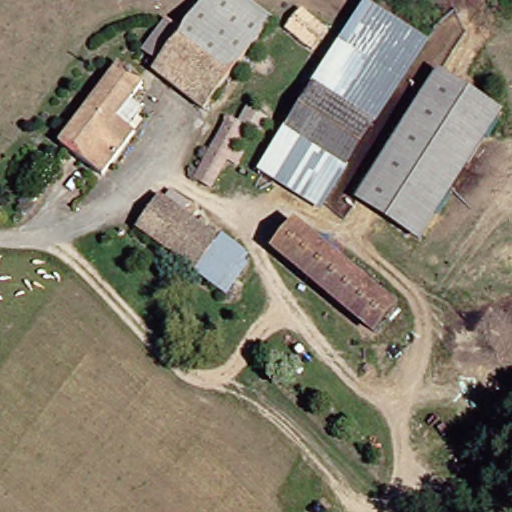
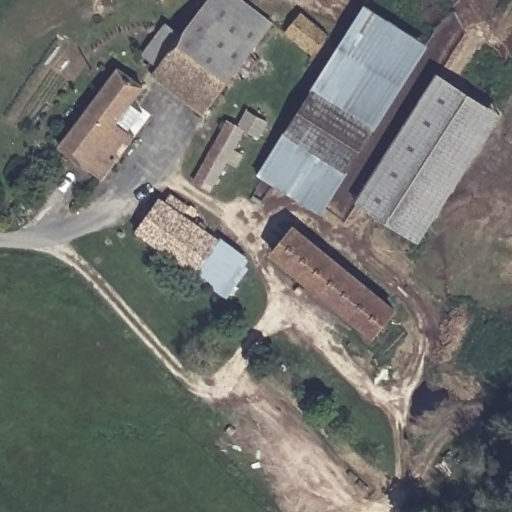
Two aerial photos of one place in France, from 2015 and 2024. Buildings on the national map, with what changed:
unchanged [(285,27),(281,33),(215,115),(162,77),(170,69),(158,57),(181,24),(196,33),(225,0),(249,0),(285,27)]
unchanged [(292,35),(307,12),(332,32),(317,53),(292,35)]
unchanged [(332,203),(274,169),(342,61),(371,15),(426,50),(421,58),(393,105),(332,203)]
unchanged [(155,90),(143,106),(152,116),(109,179),(71,146),(129,70),(155,90)]
unchanged [(444,75),(508,112),(500,124),(426,240),(384,214),(364,199),(415,121),(444,75)]
unchanged [(248,125),(259,112),(278,126),(270,139),(255,130),(242,150),(249,157),(242,164),(234,159),(215,186),(204,179),(241,120),(248,125)]
unchanged [(170,200),(228,244),(232,239),(256,256),(229,293),(204,276),(146,231),(170,200)]
unchanged [(386,330),(382,328),(283,251),(306,224),(406,302),(386,330)]

